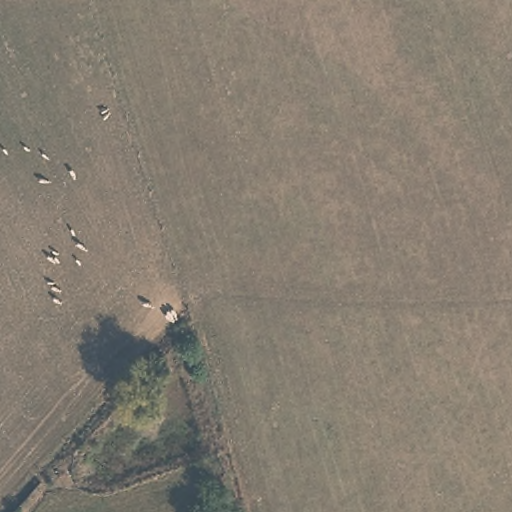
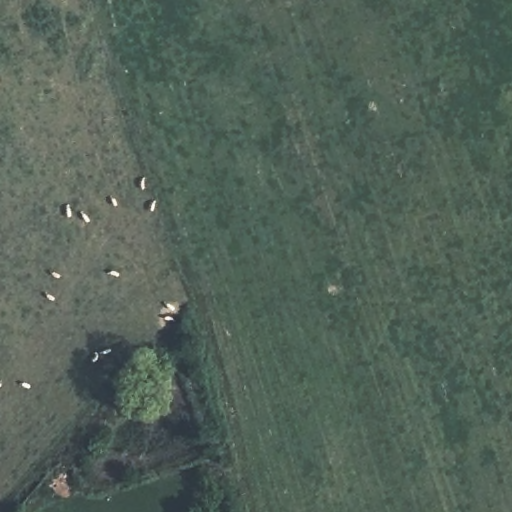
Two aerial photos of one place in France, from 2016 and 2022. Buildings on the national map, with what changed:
[]

